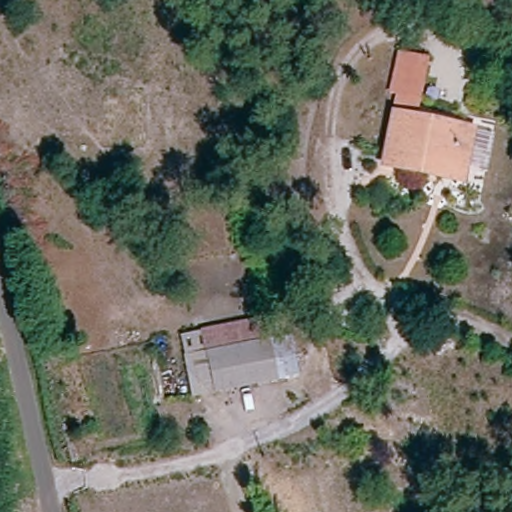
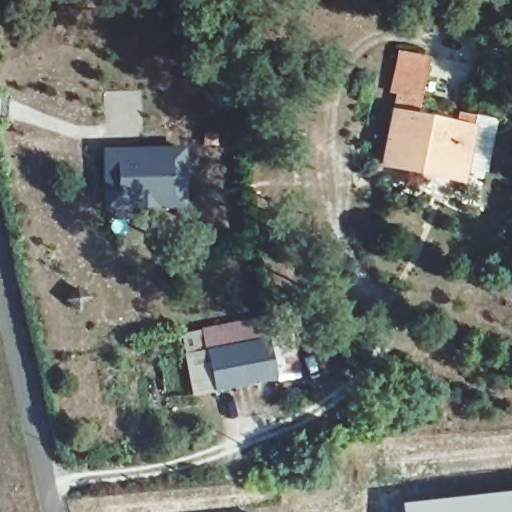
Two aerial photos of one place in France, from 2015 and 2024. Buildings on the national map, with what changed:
unchanged [(403,169),(379,164),(394,94),(387,92),(396,53),(422,59),(416,90),(410,117),(469,129),(461,169),(458,181),(403,169)]
new [(105,209),(100,150),(185,146),(187,205),(105,209)]
unchanged [(294,380),(272,385),(211,397),(200,338),(199,337),(260,325),(263,344),(286,340),(294,380)]
unchanged [(211,397),(191,401),(179,343),(200,338),(211,397)]
demolished [(345,512),(302,512),(292,461),(333,454),(345,512)]
new [(512,512),(399,512),(398,502),(512,490),(512,512)]

